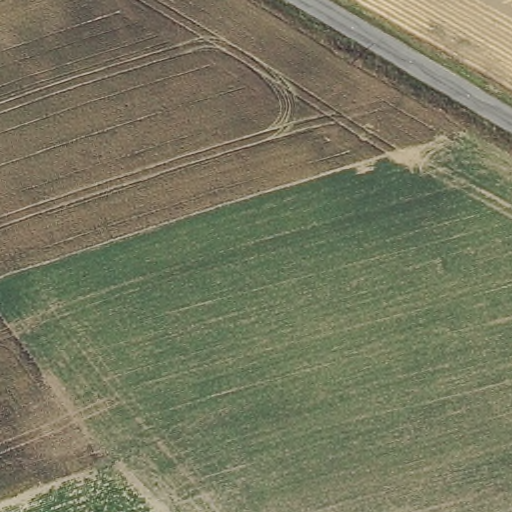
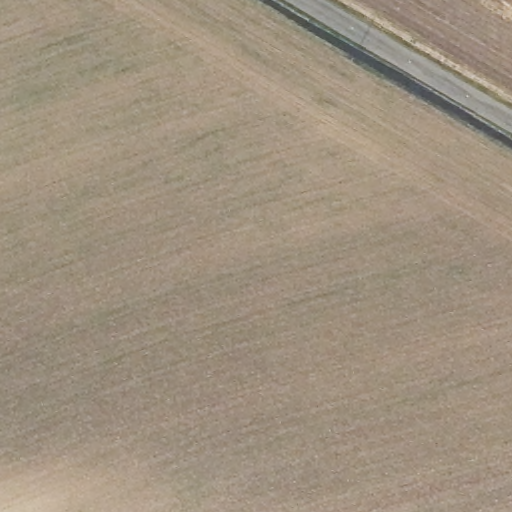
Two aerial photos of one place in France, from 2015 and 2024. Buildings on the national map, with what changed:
[]

